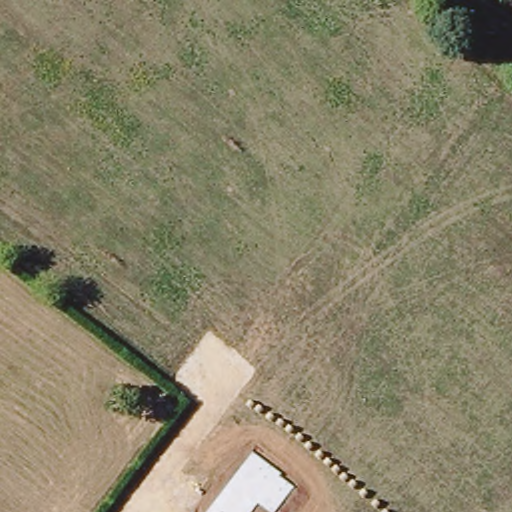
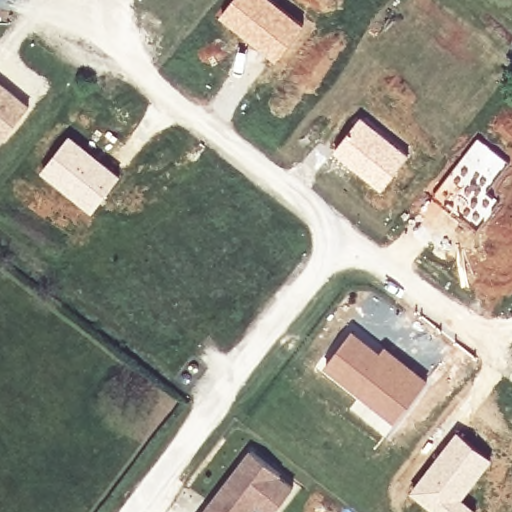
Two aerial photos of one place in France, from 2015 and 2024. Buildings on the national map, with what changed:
new [(231,0),(275,0),(305,25),(276,60),(219,15),(231,0)]
new [(32,102),(5,135),(0,131),(0,77),(32,102)]
new [(360,115),(409,156),(382,190),(332,150),(360,115)]
new [(70,133),(122,175),(93,211),(40,170),(70,133)]
new [(352,328),(380,350),(385,344),(427,378),(395,421),(325,364),(352,328)]
new [(493,458),(464,497),(479,508),(476,512),(436,512),(410,492),(456,430),(493,458)]
unchanged [(296,485),(274,512),(266,512),(257,504),(250,512),(207,512),(252,453),(296,485)]

